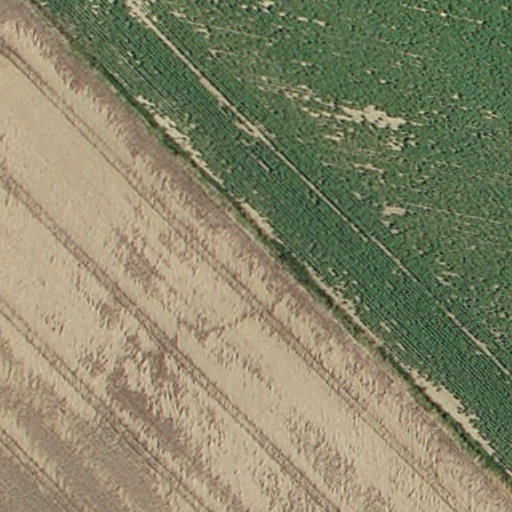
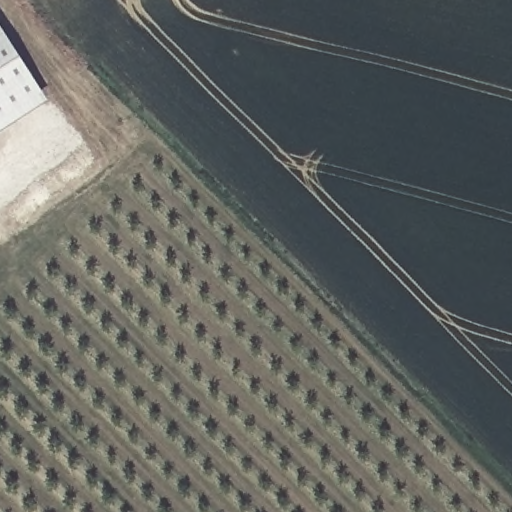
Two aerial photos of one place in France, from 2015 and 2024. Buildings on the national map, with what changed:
new [(0,117),(0,23),(42,90),(0,117)]

